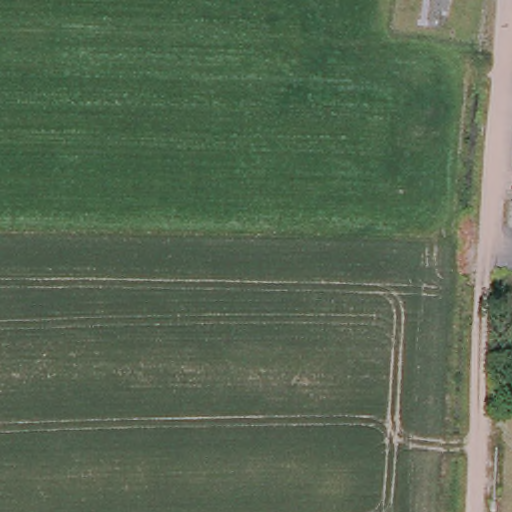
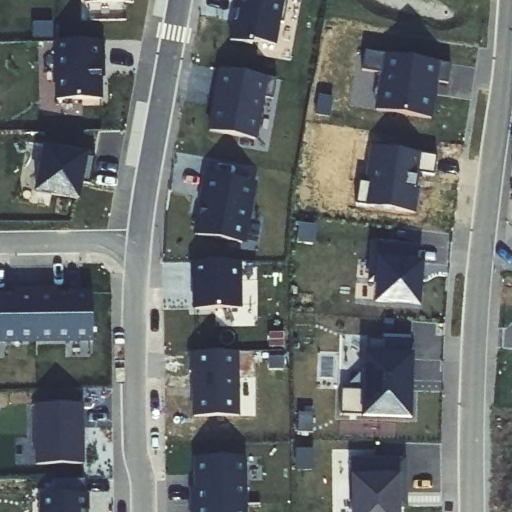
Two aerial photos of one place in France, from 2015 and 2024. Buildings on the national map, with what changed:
new [(132,4),(87,5),(87,0),(132,0),(132,4)]
new [(287,2),(292,3),(288,25),(284,24),(280,47),(257,43),(257,46),(230,42),(238,0),(288,0),(287,2)]
new [(104,41),(105,65),(102,65),(102,100),(59,101),(58,42),(62,42),(104,41)]
new [(380,73),(362,70),(365,50),(451,65),(447,85),(437,83),(432,119),(375,110),(380,73)]
new [(277,80),(273,100),(263,98),(256,140),(211,132),(215,107),(218,105),(220,95),(218,94),(222,70),(277,80)]
new [(355,204),(358,181),(363,182),(369,146),(437,156),(434,175),(421,173),(415,214),(355,204)]
new [(97,158),(92,185),(82,183),(80,200),(38,193),(46,149),(97,158)]
new [(254,182),(242,248),(198,241),(203,212),(200,211),(207,174),(254,182)]
new [(374,243),(415,247),(413,263),(422,264),(418,305),(378,302),(380,282),(371,281),(374,243)]
new [(257,262),(257,325),(216,325),(215,309),(197,310),(196,279),(193,279),(193,263),(257,262)]
new [(0,341),(0,295),(16,295),(16,290),(37,290),(38,341),(0,341)]
new [(59,290),(59,295),(94,294),(95,340),(38,341),(37,290),(59,290)]
new [(342,415),(343,390),(367,390),(368,340),(384,341),(383,356),(412,357),(410,392),(414,392),(413,417),(342,415)]
new [(240,416),(196,417),(195,370),(193,370),(192,352),(238,352),(240,416)]
new [(38,405),(84,405),(85,464),(39,465),(38,405)]
new [(193,488),(193,457),(246,457),(247,512),(189,512),(189,488),(193,488)]
new [(400,492),(400,512),(355,512),(355,501),(352,501),(352,477),(354,477),(353,460),(407,459),(407,492),(400,492)]
new [(44,512),(44,495),(88,494),(89,512),(44,512)]

